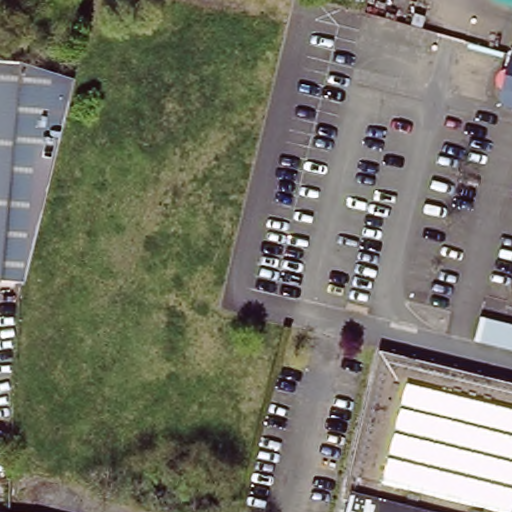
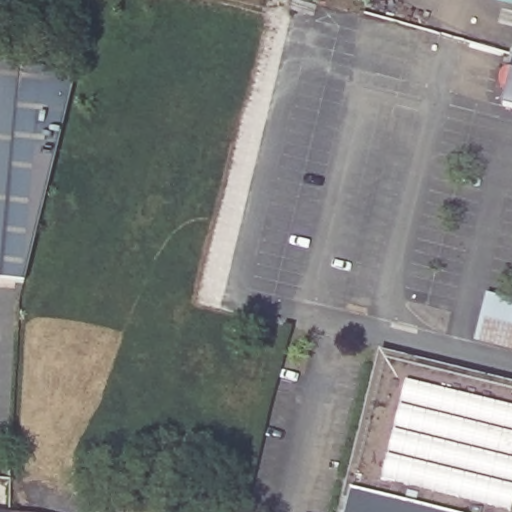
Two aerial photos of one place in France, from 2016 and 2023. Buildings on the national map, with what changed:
unchanged [(512,55),(512,112),(497,108),(512,55)]
unchanged [(24,283),(0,281),(0,61),(12,61),(73,80),(24,283)]
unchanged [(512,350),(472,340),(477,320),(512,328),(512,350)]
unchanged [(512,512),(354,512),(394,354),(512,383),(512,512)]

